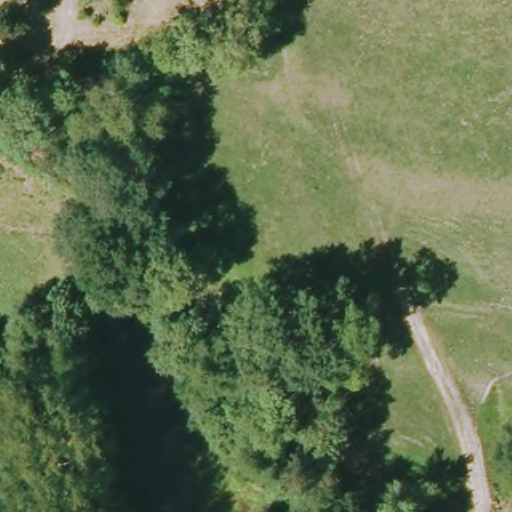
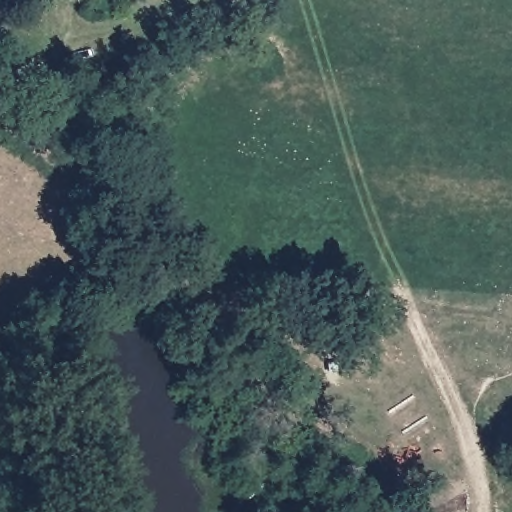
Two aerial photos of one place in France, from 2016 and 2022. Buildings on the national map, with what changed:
[]

